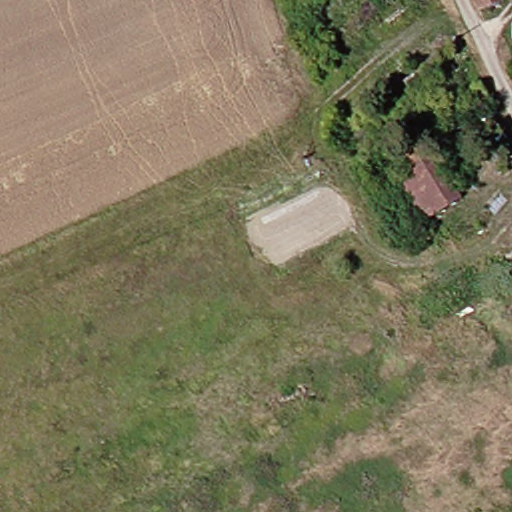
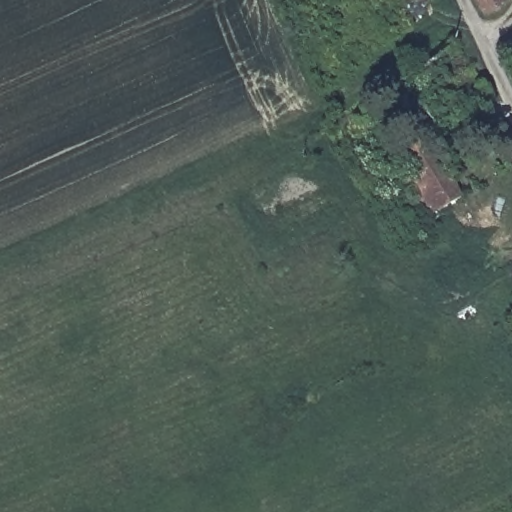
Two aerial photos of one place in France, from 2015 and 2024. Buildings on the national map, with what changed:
unchanged [(428,221),(402,177),(413,172),(402,149),(425,134),(465,196),(428,221)]

